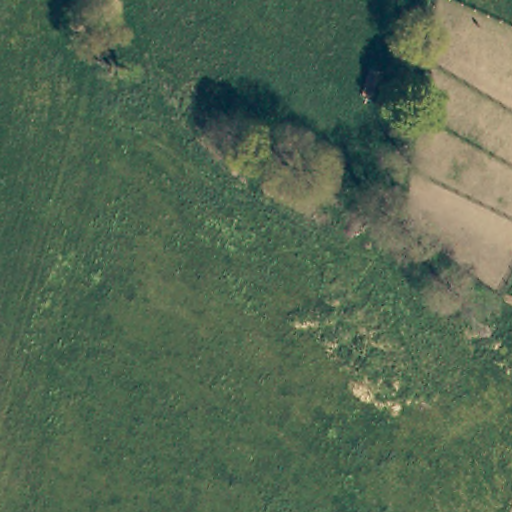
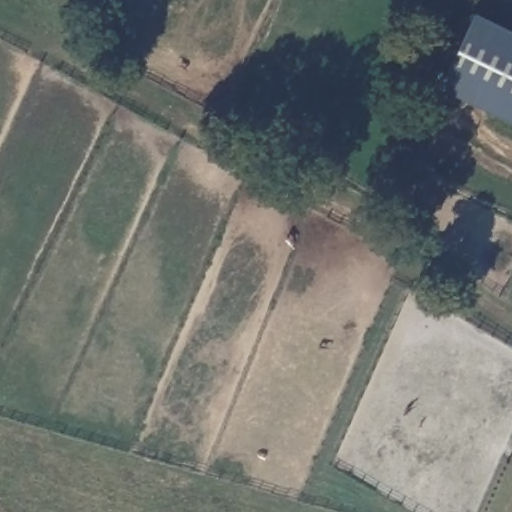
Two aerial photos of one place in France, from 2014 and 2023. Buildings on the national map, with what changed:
new [(512,32),(512,125),(435,88),(472,13),(512,32)]

